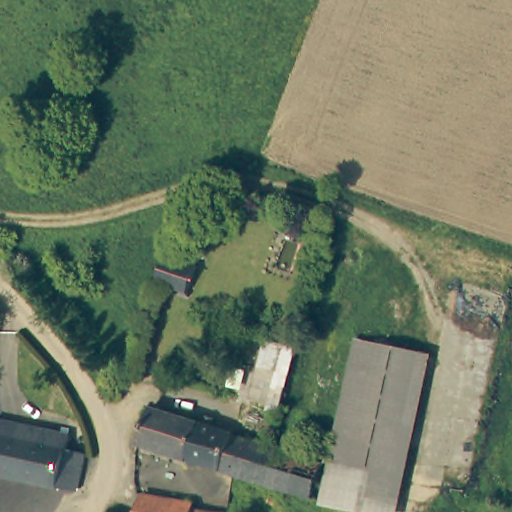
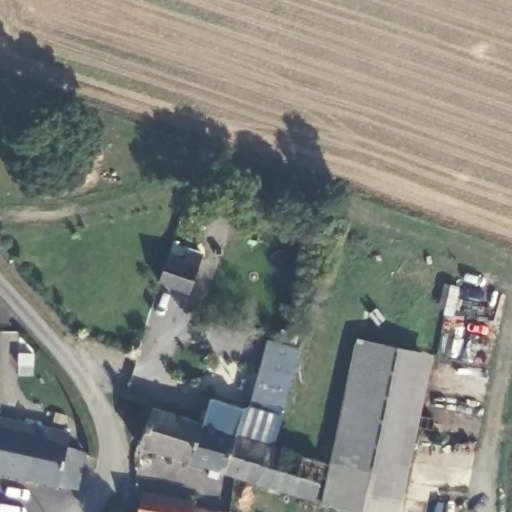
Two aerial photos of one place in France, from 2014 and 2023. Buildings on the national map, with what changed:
unchanged [(175,245),(201,253),(189,296),(152,286),(159,260),(175,245)]
unchanged [(268,410),(270,403),(251,399),(270,330),(301,338),(281,413),(268,410)]
unchanged [(325,503),(355,337),(428,356),(399,512),(363,512),(325,503)]
unchanged [(190,461),(141,447),(142,442),(154,408),(199,424),(190,461)]
unchanged [(69,451),(85,452),(79,488),(0,476),(0,417),(69,429),(69,451)]
unchanged [(190,461),(199,424),(234,436),(221,472),(190,461)]
unchanged [(322,466),(311,504),(221,472),(234,436),(322,466)]
unchanged [(141,487),(198,498),(210,512),(135,512),(141,487)]

